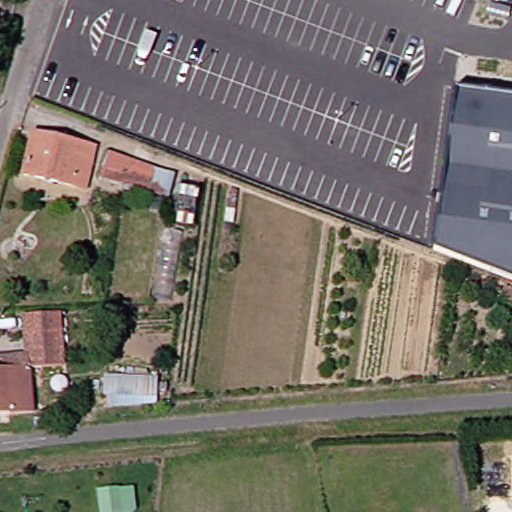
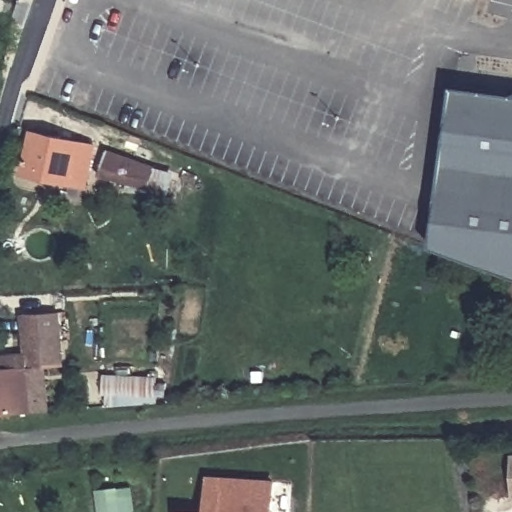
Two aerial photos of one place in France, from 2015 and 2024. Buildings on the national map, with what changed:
unchanged [(456,86),(512,93),(512,273),(436,244),(456,86)]
unchanged [(87,188),(26,174),(35,133),(96,148),(87,188)]
unchanged [(170,198),(150,192),(101,178),(110,151),(159,167),(158,169),(177,175),(170,198)]
unchanged [(508,281),(512,282),(512,300),(502,296),(508,281)]
unchanged [(68,366),(33,369),(38,412),(0,415),(0,360),(35,356),(31,315),(62,312),(68,366)]
unchanged [(162,378),(160,398),(104,396),(105,375),(162,378)]
unchanged [(127,464),(130,512),(103,512),(100,465),(127,464)]
new [(207,480),(272,484),(270,512),(205,512),(207,480)]

